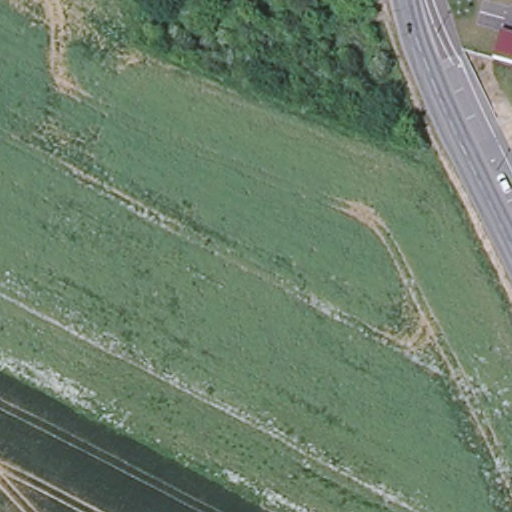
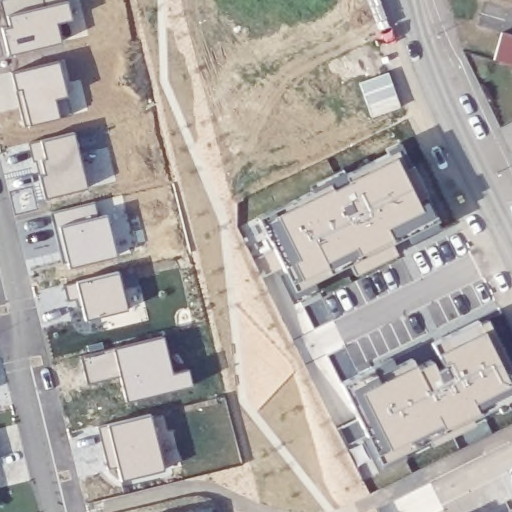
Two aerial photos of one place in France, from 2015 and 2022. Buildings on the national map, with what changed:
new [(71,19),(56,23),(61,41),(7,55),(7,54),(8,53),(2,28),(9,26),(4,27),(0,8),(0,0),(67,0),(71,19)]
unchanged [(512,36),(512,68),(495,64),(503,33),(512,36)]
new [(58,60),(71,114),(24,126),(19,106),(24,105),(20,89),(15,90),(11,72),(58,60)]
new [(73,132),(87,188),(44,198),(38,175),(43,173),(39,160),(33,162),(28,143),(73,132)]
new [(399,163),(428,213),(313,273),(282,218),(399,163)]
new [(94,201),(98,216),(106,214),(116,256),(68,268),(63,244),(58,245),(50,213),(94,201)]
new [(63,244),(68,262),(63,263),(58,245),(63,244)]
new [(118,271),(122,290),(140,285),(148,320),(104,330),(101,316),(85,320),(79,298),(66,301),(63,285),(118,271)]
new [(79,298),(82,306),(77,307),(74,299),(79,298)]
new [(512,383),(512,393),(394,450),(364,393),(488,333),(512,383)]
new [(163,335),(171,372),(188,368),(192,385),(125,401),(118,373),(113,374),(113,378),(86,384),(80,356),(163,335)]
new [(113,374),(118,373),(119,376),(113,378),(113,374)]
new [(151,414),(164,470),(120,480),(117,467),(108,469),(98,426),(151,414)]
new [(512,512),(509,512),(512,510),(512,512)]

